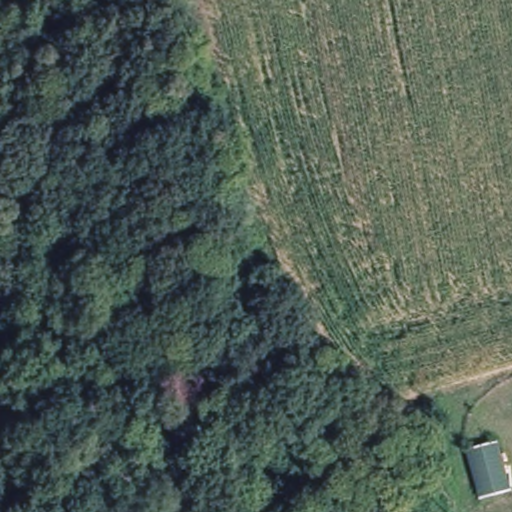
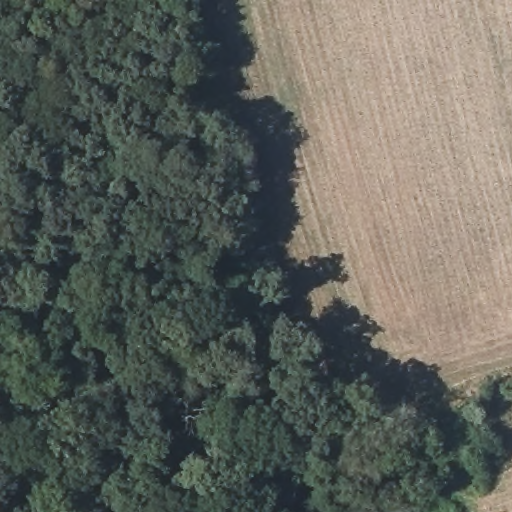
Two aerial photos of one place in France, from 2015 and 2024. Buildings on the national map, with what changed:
demolished [(467,451),(498,443),(511,490),(478,498),(467,451)]

